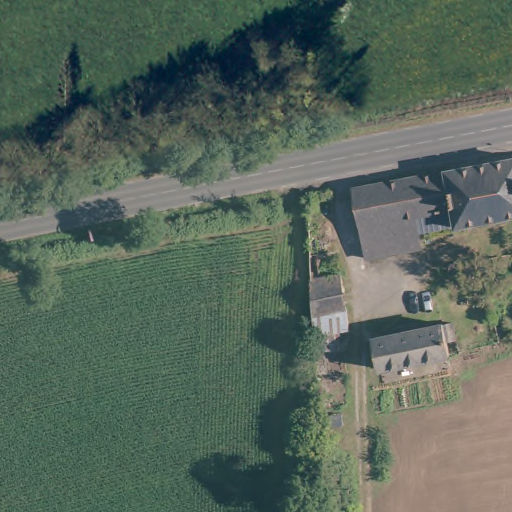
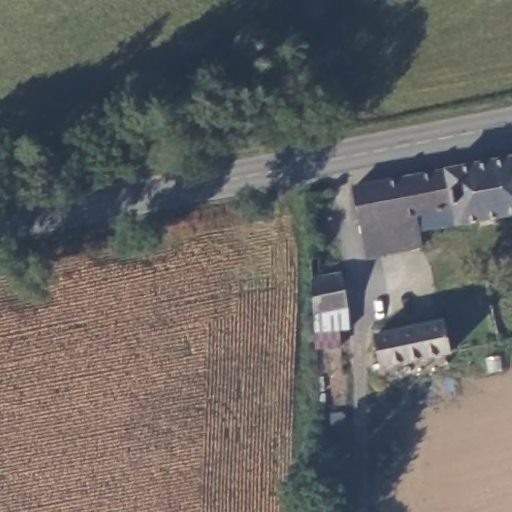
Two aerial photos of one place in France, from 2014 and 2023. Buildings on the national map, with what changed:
unchanged [(426,261),(372,274),(352,192),(512,157),(512,227),(423,249),(426,261)]
unchanged [(308,279),(341,272),(349,331),(338,335),(341,349),(321,353),(308,279)]
unchanged [(437,317),(443,342),(447,355),(388,371),(378,373),(368,335),(383,331),(437,317)]

